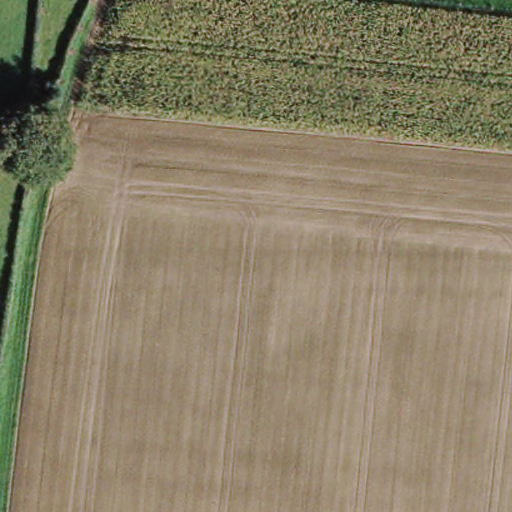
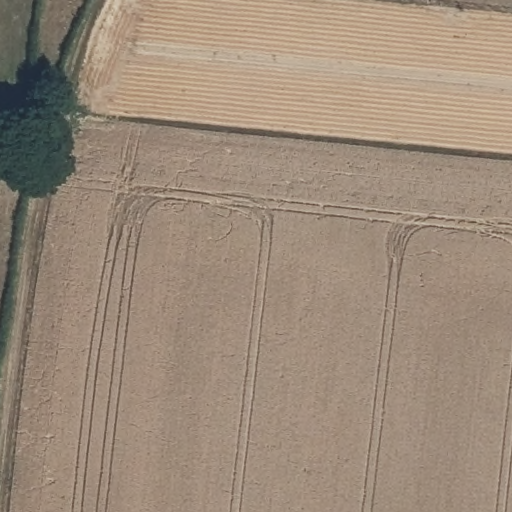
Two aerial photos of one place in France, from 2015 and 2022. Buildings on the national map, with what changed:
[]

